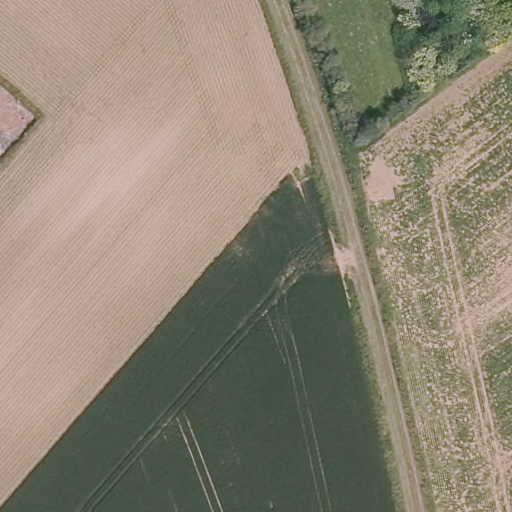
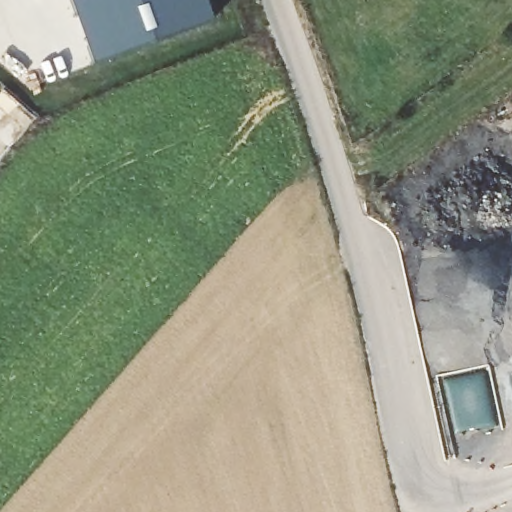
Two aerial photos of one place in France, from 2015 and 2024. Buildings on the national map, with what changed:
new [(93,67),(70,0),(204,0),(213,24),(93,67)]

